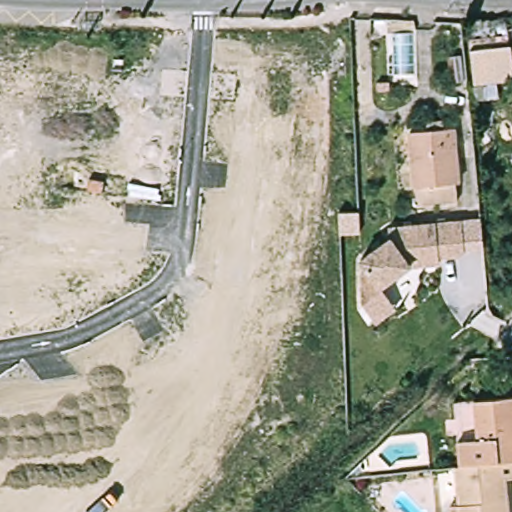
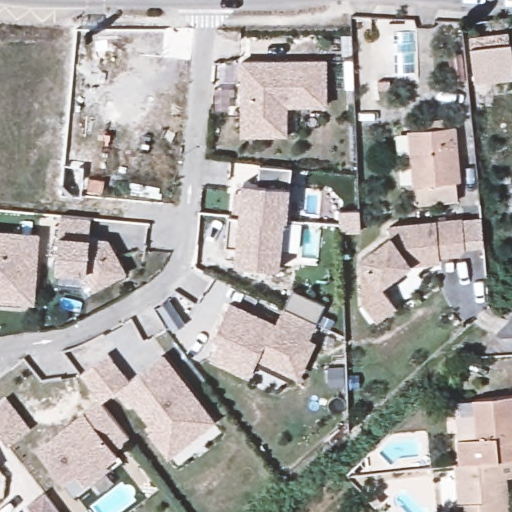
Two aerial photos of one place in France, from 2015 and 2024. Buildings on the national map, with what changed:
unchanged [(512,76),(477,78),(474,46),(509,45),(512,76)]
new [(243,65),(327,62),(329,106),(289,107),(290,136),(246,138),(246,131),(243,65)]
unchanged [(460,195),(418,198),(412,137),(457,136),(460,195)]
new [(229,215),(233,216),(235,192),(243,192),(244,183),(258,185),(260,166),(292,168),(287,220),(284,220),(279,268),(236,264),(238,247),(226,247),(227,235),(229,215)]
unchanged [(60,215),(90,218),(88,239),(107,241),(124,272),(95,287),(86,272),(56,270),(60,215)]
unchanged [(464,254),(440,257),(440,265),(410,268),(388,286),(399,307),(377,327),(360,301),(371,292),(355,264),(392,236),(390,225),(464,217),(464,254)]
new [(38,235),(33,302),(15,301),(0,299),(0,232),(38,235)]
new [(219,337),(214,335),(228,305),(252,316),(250,321),(264,327),(266,322),(275,327),(283,308),(316,323),(308,342),(311,343),(297,374),(258,356),(250,375),(249,374),(211,356),(219,337)]
new [(217,422),(167,460),(148,434),(152,430),(132,403),(127,407),(115,392),(101,402),(100,400),(81,376),(107,354),(129,380),(164,355),(217,422)]
new [(7,397),(31,427),(9,444),(0,433),(0,402),(7,397)]
unchanged [(84,485),(75,472),(62,482),(37,449),(100,400),(119,426),(129,437),(113,450),(117,455),(105,463),(107,466),(84,485)]
unchanged [(459,442),(478,440),(474,403),(512,400),(512,465),(461,469),(459,442)]
unchanged [(512,465),(512,482),(510,482),(512,508),(512,512),(462,512),(457,470),(461,469),(512,465)]
new [(46,492),(62,512),(35,512),(30,505),(46,492)]

